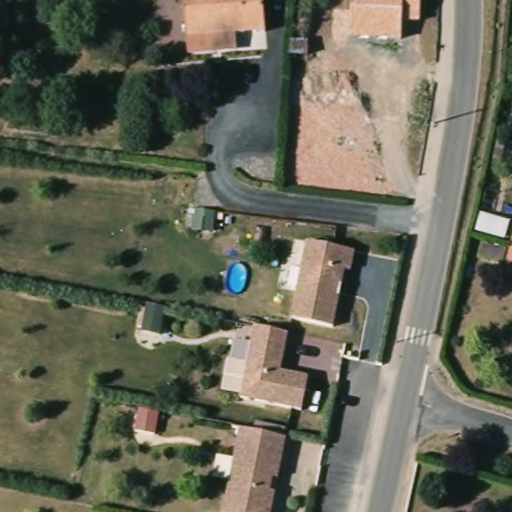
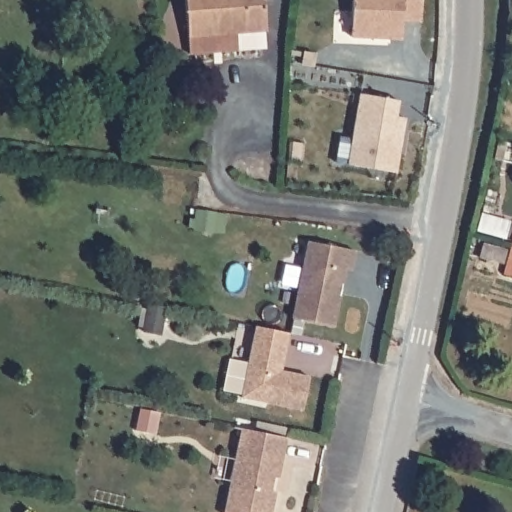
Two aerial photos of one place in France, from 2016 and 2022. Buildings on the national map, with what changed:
unchanged [(186,41),(181,0),(258,0),(262,34),(235,36),(237,52),(187,57),(186,41)]
unchanged [(421,0),(419,22),(403,23),(400,38),(350,38),(352,0),(421,0)]
new [(354,142),(362,95),(401,101),(398,117),(407,119),(398,173),(350,165),(337,163),(341,140),(354,142)]
unchanged [(350,267),(344,266),(332,323),(290,315),(306,238),(354,248),(350,267)]
unchanged [(512,261),(512,271),(510,270),(512,261)]
unchanged [(239,395),(252,326),(253,323),(287,330),(286,333),(279,368),(307,373),(300,407),(239,395)]
unchanged [(280,458),(276,474),(272,473),(269,487),(273,487),(268,512),(226,512),(221,511),(238,428),(239,425),(285,433),(284,437),(280,458)]

